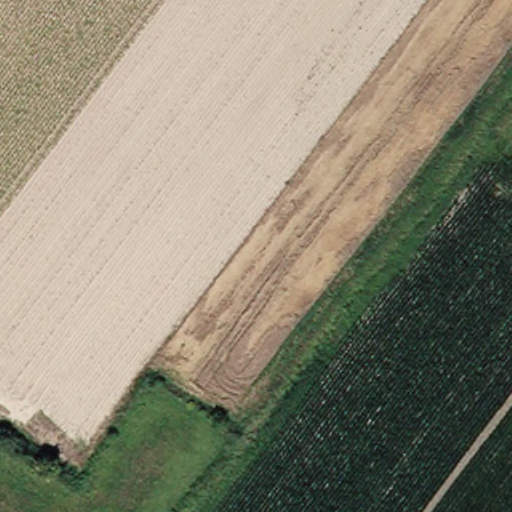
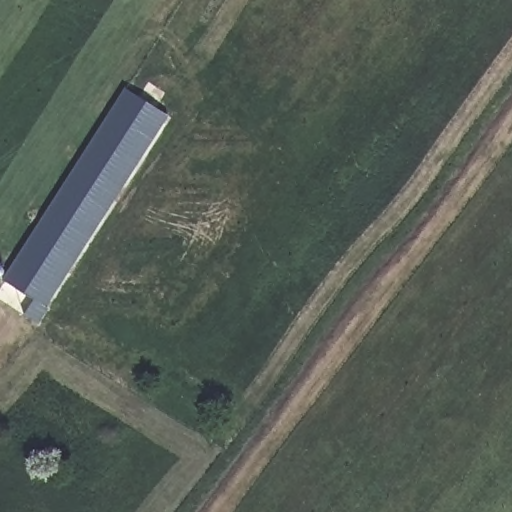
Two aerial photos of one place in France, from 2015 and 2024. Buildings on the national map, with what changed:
new [(46,313),(34,306),(37,301),(3,280),(125,90),(170,118),(46,313)]

